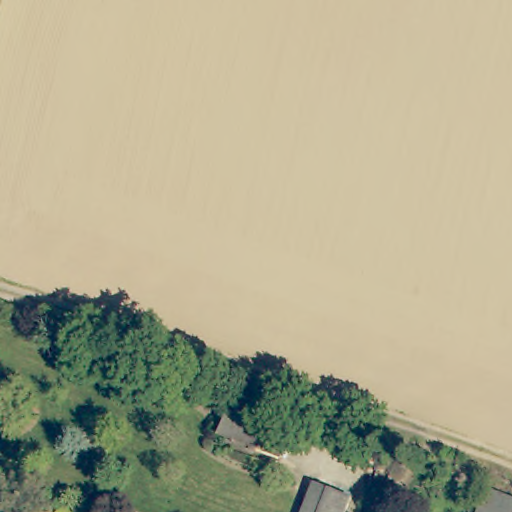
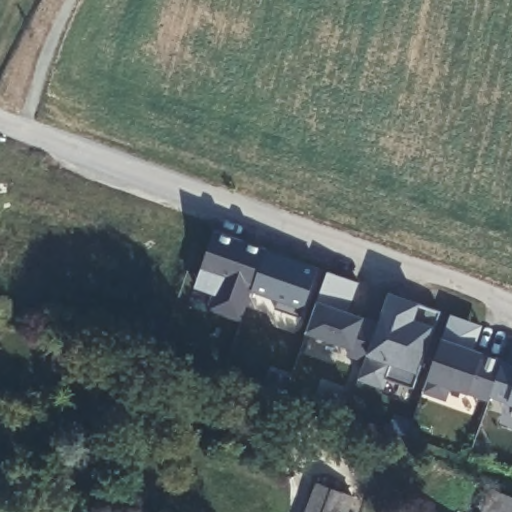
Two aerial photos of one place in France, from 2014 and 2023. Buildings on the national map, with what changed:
new [(301,317),(275,308),(278,300),(251,291),(240,321),(207,310),(213,294),(194,286),(213,229),(319,266),(301,317)]
new [(412,387),(389,378),(384,390),(356,381),(363,362),(347,355),(352,348),(307,332),(318,301),(328,270),(359,282),(349,311),(364,316),(378,322),(390,291),(422,302),(420,305),(440,313),(412,387)]
new [(508,402),(490,397),(488,401),(468,393),(452,387),(446,400),(421,391),(427,378),(442,336),(449,313),(483,325),(476,349),(512,361),(512,404),(508,402)]
unchanged [(301,428),(288,458),(225,435),(237,404),(301,428)]
unchanged [(347,512),(307,512),(318,484),(353,497),(347,512)]
unchanged [(483,512),(492,490),(512,497),(512,512),(483,512)]

